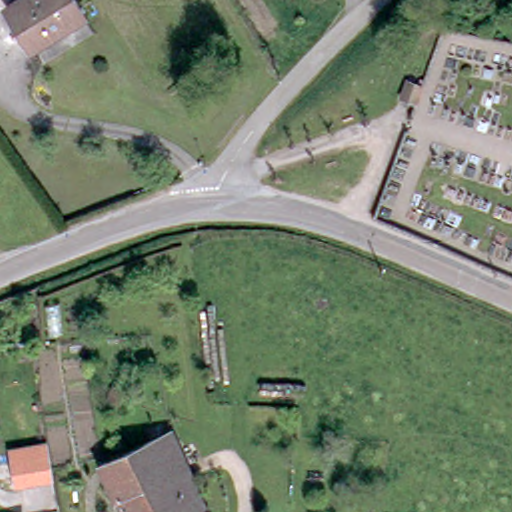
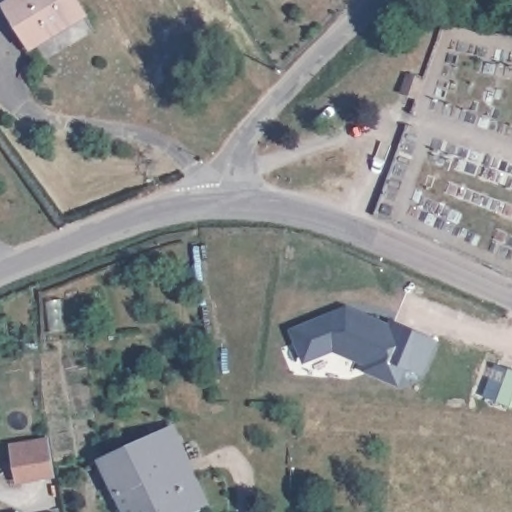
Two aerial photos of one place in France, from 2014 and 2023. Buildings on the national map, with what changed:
unchanged [(89,21),(37,53),(6,0),(76,0),(89,21)]
unchanged [(417,98),(403,93),(410,76),(422,80),(417,98)]
new [(347,307),(389,324),(391,320),(438,340),(422,376),(405,370),(398,387),(362,372),(364,366),(336,354),(332,353),(303,365),(289,330),(347,307)]
new [(483,396),(496,365),(512,370),(512,408),(483,396)]
unchanged [(166,434),(198,512),(114,512),(93,467),(166,434)]
new [(46,439),(52,477),(16,483),(10,446),(46,439)]

